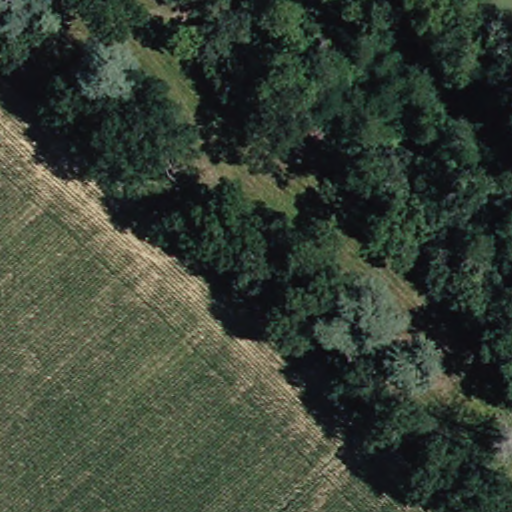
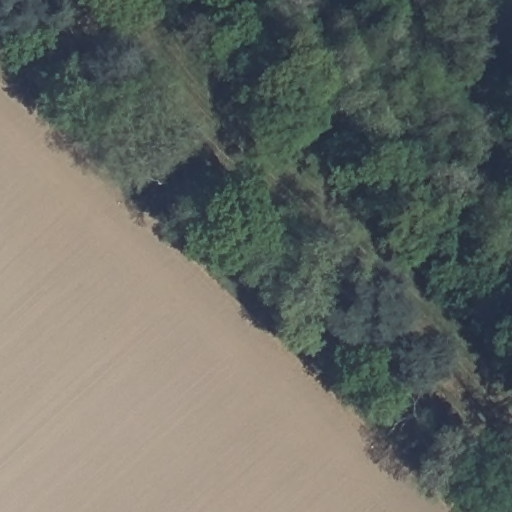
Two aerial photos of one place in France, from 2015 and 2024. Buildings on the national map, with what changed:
unchanged [(511,512),(509,510),(512,507),(512,512),(511,512)]

